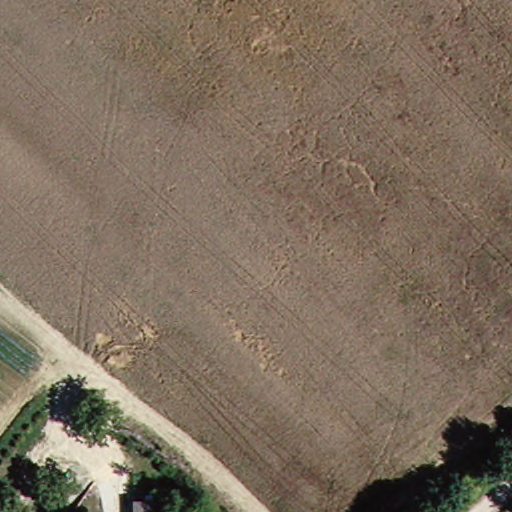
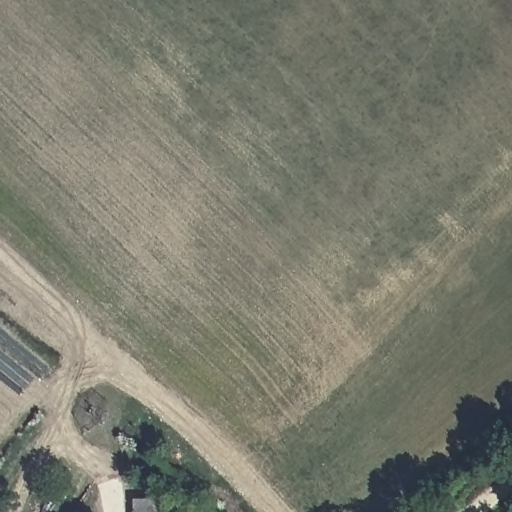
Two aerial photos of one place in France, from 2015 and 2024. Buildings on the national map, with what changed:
unchanged [(124,503),(161,503),(161,512),(124,512),(124,503)]

